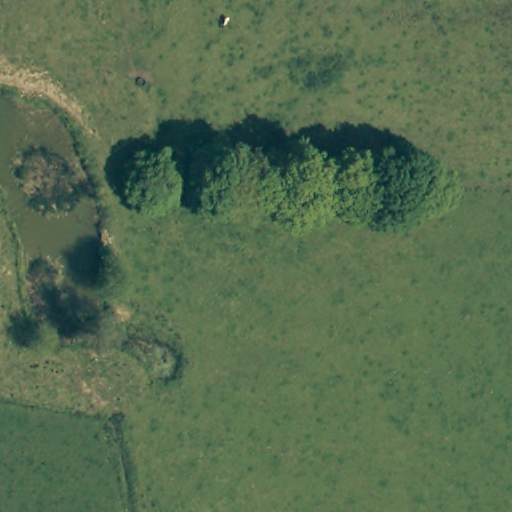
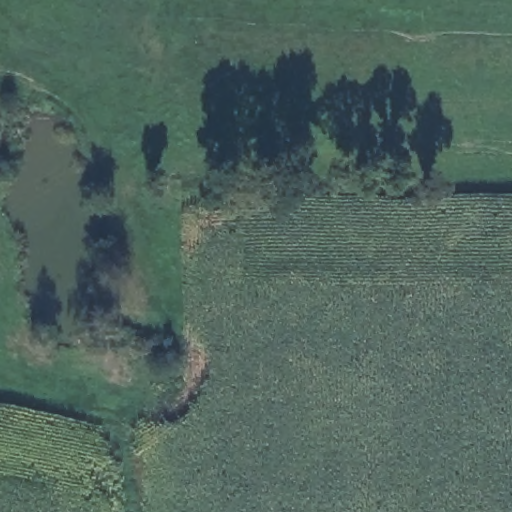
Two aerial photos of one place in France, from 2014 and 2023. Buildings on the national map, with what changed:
[]

